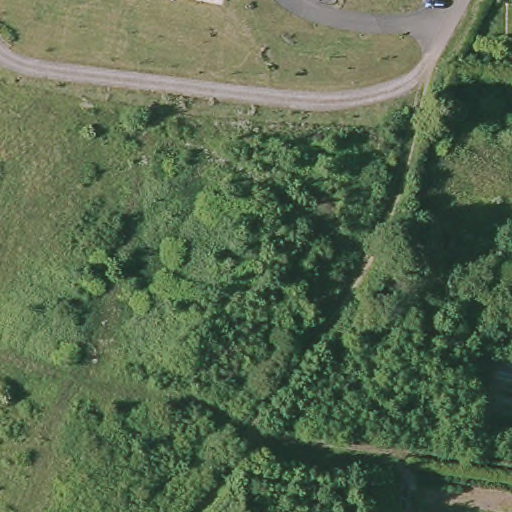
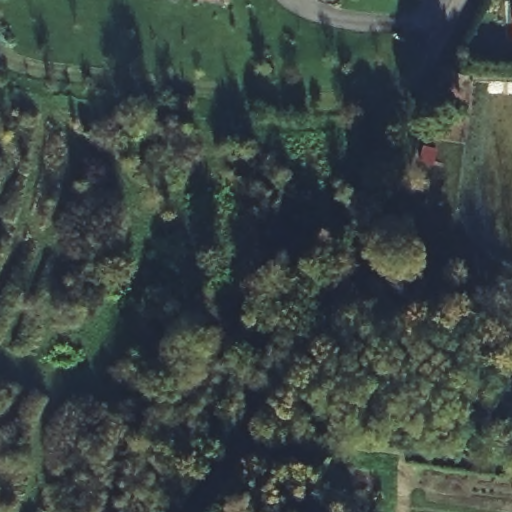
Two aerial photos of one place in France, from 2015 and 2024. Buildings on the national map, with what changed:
unchanged [(223,4),(201,0),(224,0),(223,4)]

